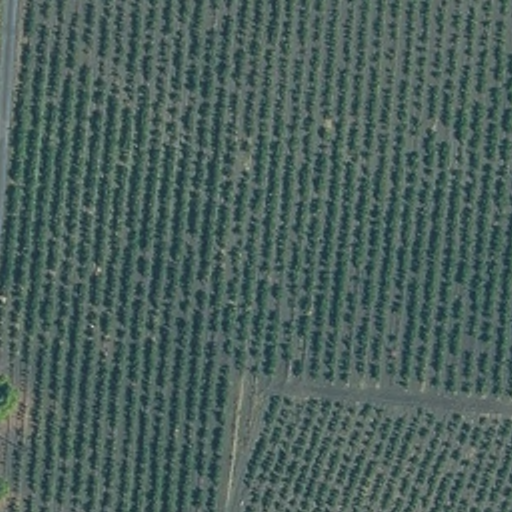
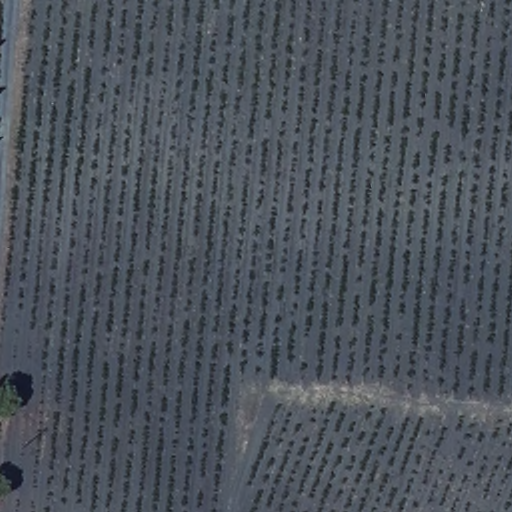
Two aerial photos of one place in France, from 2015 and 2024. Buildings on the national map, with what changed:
[]

